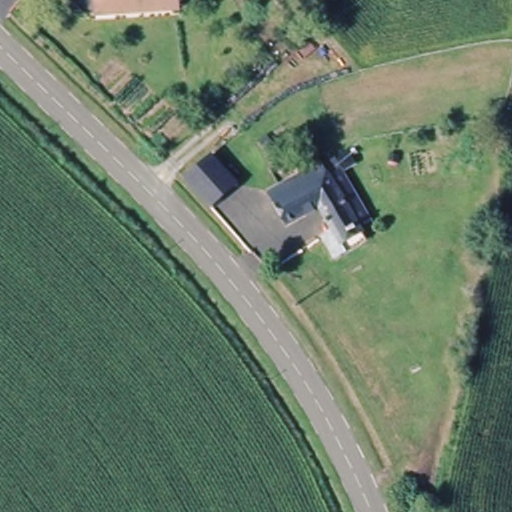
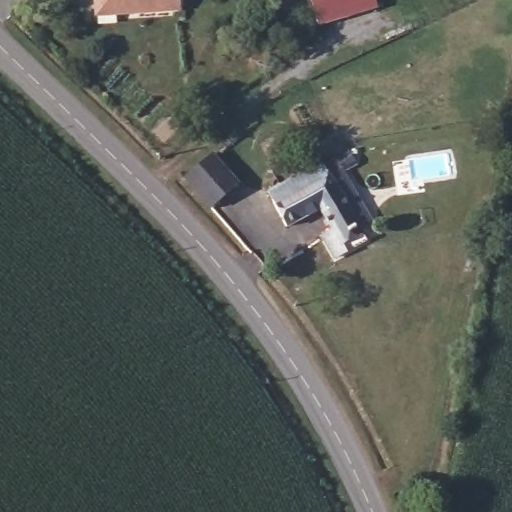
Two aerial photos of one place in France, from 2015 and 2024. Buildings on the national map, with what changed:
unchanged [(99,4),(99,0),(179,0),(179,10),(124,14),(99,15),(99,4)]
new [(318,27),(310,0),(374,0),(376,9),(318,27)]
unchanged [(211,159),(235,189),(211,210),(186,180),(211,159)]
unchanged [(346,260),(336,247),(329,237),(339,230),(325,209),(293,227),(274,192),(325,161),(361,228),(373,242),(346,260)]

